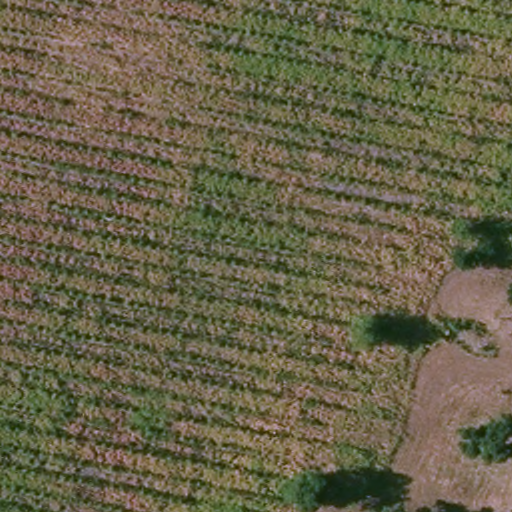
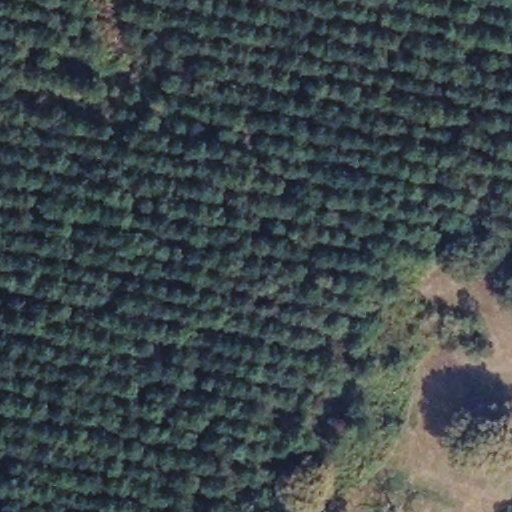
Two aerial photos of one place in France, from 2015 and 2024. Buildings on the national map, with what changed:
[]

